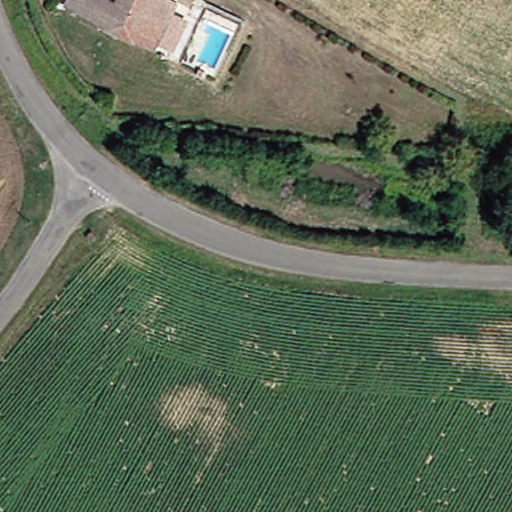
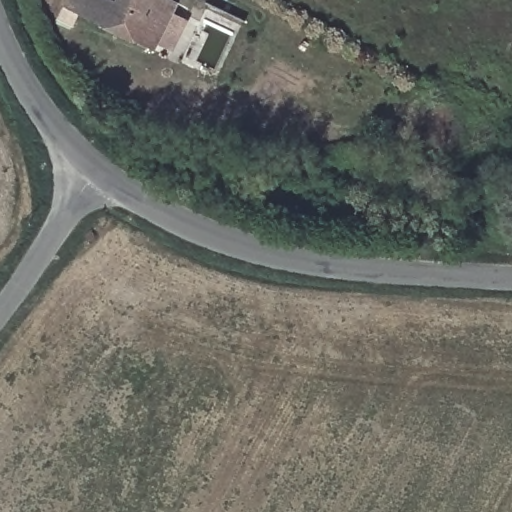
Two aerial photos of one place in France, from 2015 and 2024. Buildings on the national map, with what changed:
unchanged [(74,0),(180,0),(156,45),(74,0)]

